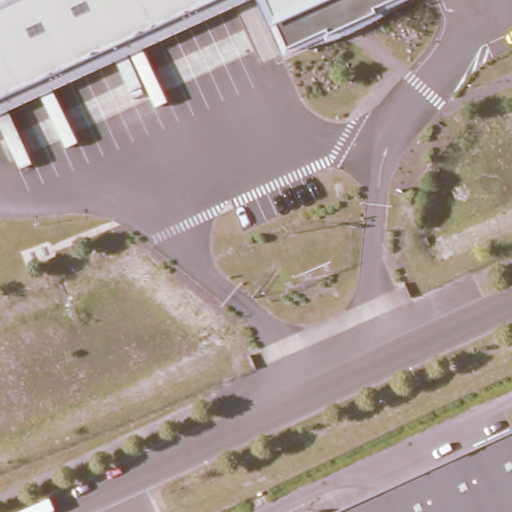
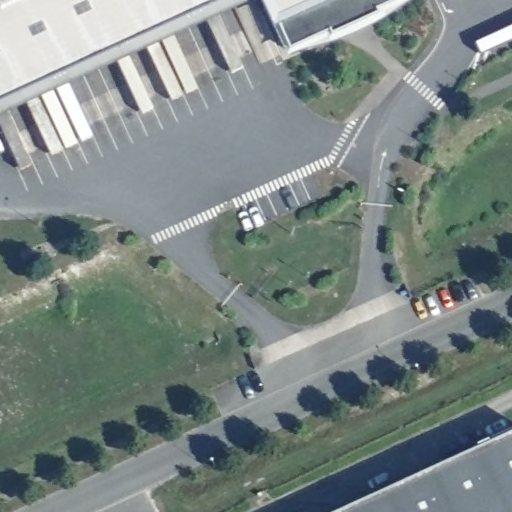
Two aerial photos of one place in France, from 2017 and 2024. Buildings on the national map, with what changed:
unchanged [(379,19),(328,42),(326,39),(285,56),(273,30),(269,32),(254,1),(0,114),(0,0),(413,0),(378,16),(379,19)]
unchanged [(512,434),(512,512),(342,512),(512,434)]
unchanged [(303,505),(319,505),(337,512),(283,512),(303,505)]

